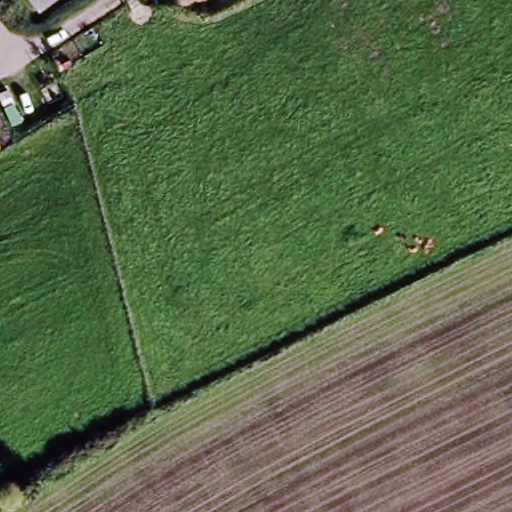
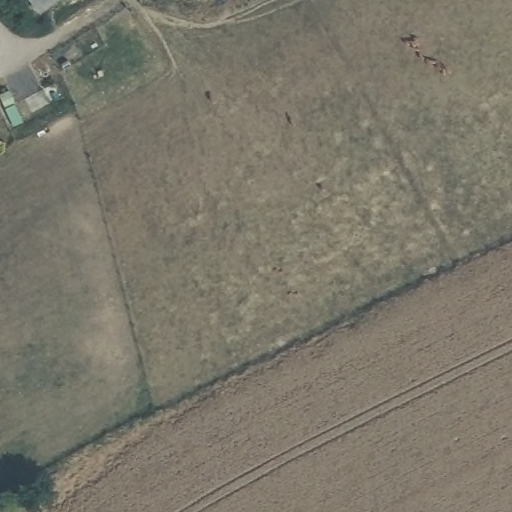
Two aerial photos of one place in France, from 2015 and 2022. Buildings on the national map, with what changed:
unchanged [(28,0),(46,0),(34,9),(28,0)]

